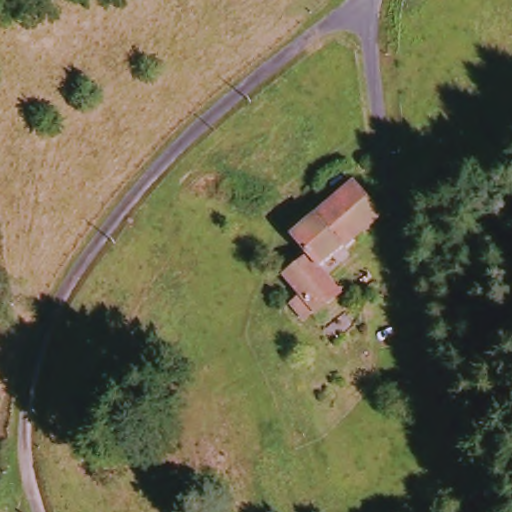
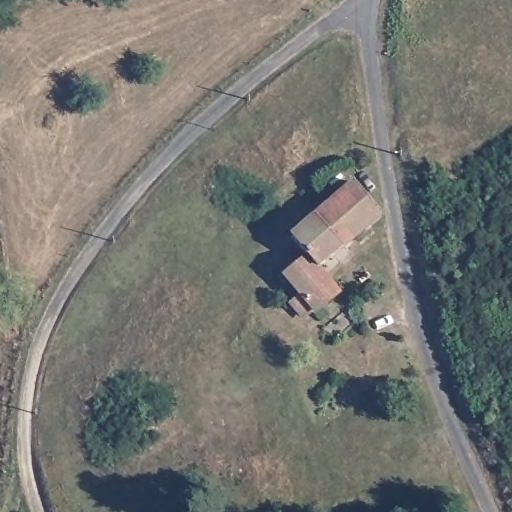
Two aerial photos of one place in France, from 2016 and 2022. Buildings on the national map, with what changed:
unchanged [(296,316),(306,305),(287,282),(313,260),(294,239),(361,181),(386,217),(324,272),(347,300),(321,325),(310,335),(296,316)]

